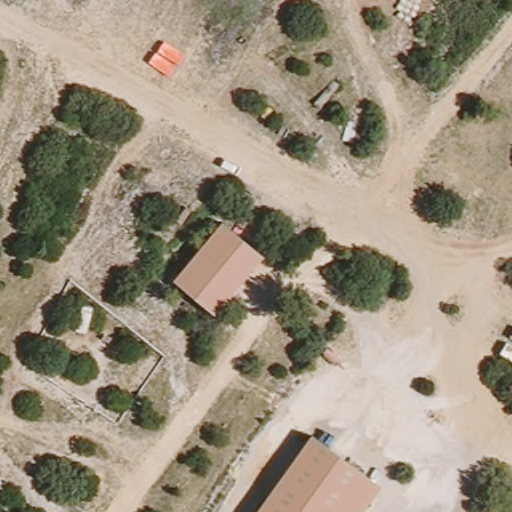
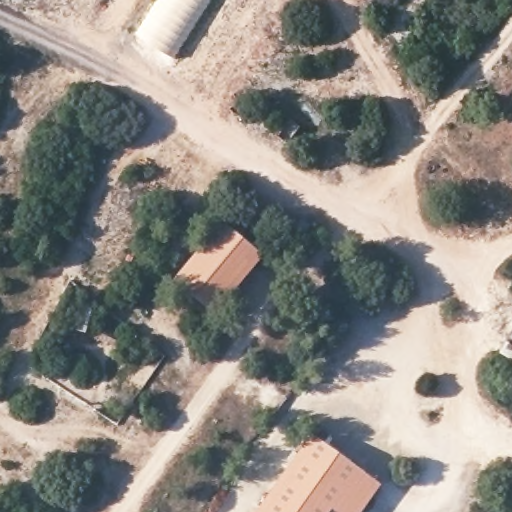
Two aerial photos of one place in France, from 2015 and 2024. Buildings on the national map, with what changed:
new [(137,35),(159,0),(210,0),(173,58),(137,35)]
unchanged [(227,219),(265,258),(219,309),(178,277),(227,219)]
unchanged [(315,431),(380,485),(361,512),(258,512),(315,431)]

